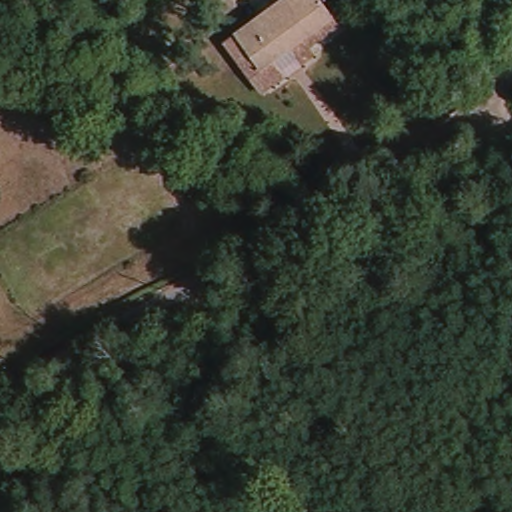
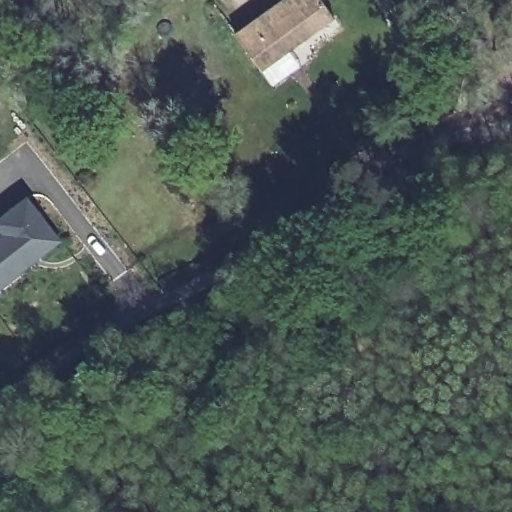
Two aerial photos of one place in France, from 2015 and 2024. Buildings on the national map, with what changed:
unchanged [(318,0),(335,24),(307,44),(255,81),(226,43),(287,0),(318,0)]
unchanged [(316,56),(256,101),(218,49),(226,43),(255,81),(307,44),(316,56)]
new [(6,237),(0,228),(0,220),(27,199),(60,241),(2,287),(0,288),(0,241),(6,237)]

